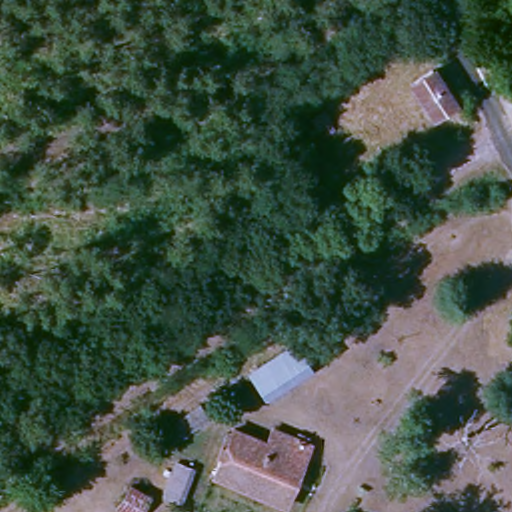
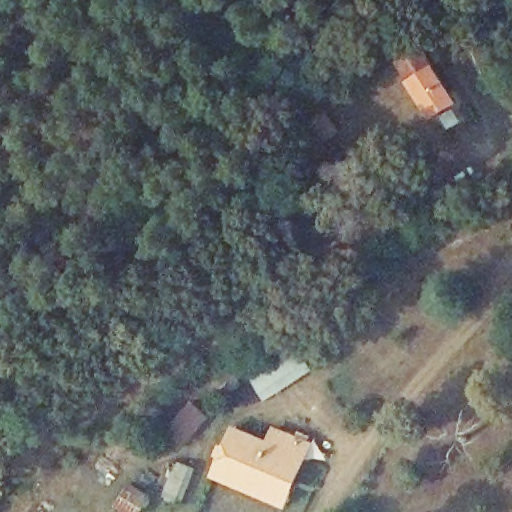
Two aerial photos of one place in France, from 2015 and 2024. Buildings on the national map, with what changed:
unchanged [(428,71),(447,101),(429,113),(410,82),(428,71)]
unchanged [(295,341),(310,366),(261,399),(247,374),(295,341)]
unchanged [(199,401),(208,421),(157,455),(147,437),(199,401)]
unchanged [(301,457),(275,503),(220,472),(245,427),(301,457)]
unchanged [(198,470),(182,503),(160,495),(172,458),(198,470)]
unchanged [(127,482),(178,510),(177,512),(122,512),(112,506),(127,482)]

